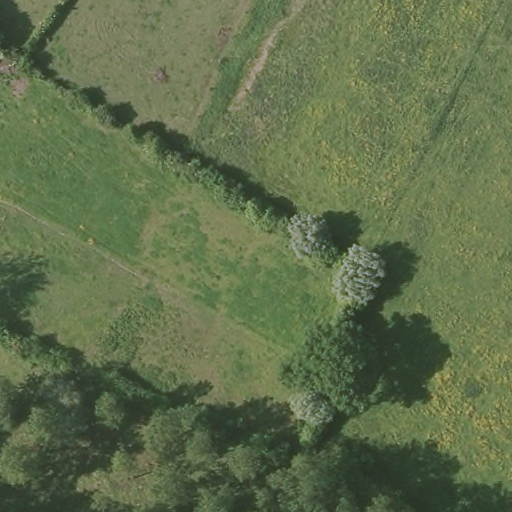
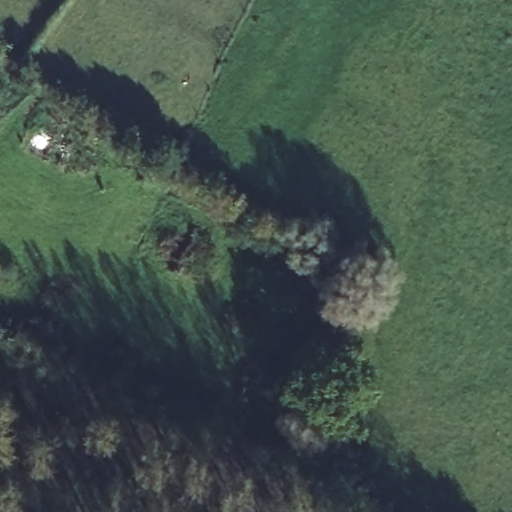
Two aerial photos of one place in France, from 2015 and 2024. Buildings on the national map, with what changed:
[]

